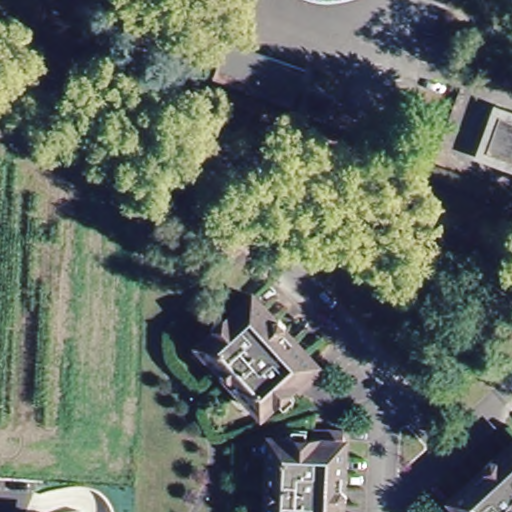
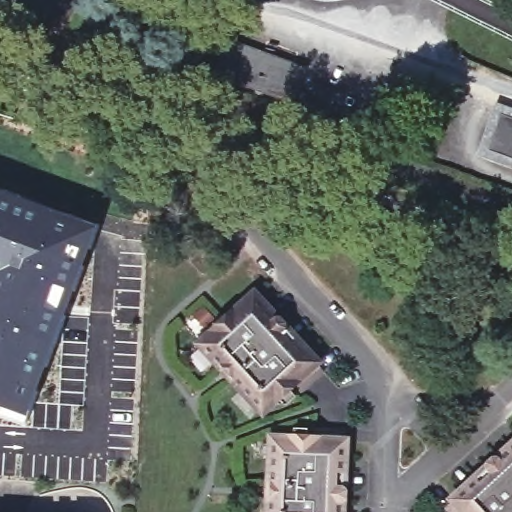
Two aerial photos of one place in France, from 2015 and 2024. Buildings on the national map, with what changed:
unchanged [(228,37),(252,45),(249,53),(302,70),(292,97),(216,70),(226,44),(228,37)]
new [(17,194),(102,225),(91,259),(60,346),(29,419),(2,409),(0,413),(0,188),(17,194)]
unchanged [(206,252),(221,269),(207,282),(193,265),(206,252)]
unchanged [(253,285),(322,359),(299,381),(291,374),(261,399),(201,333),(253,285)]
unchanged [(278,441),(317,443),(318,431),(349,433),(345,512),(274,512),(278,441)]
unchanged [(512,512),(455,512),(454,511),(512,459),(512,512)]

